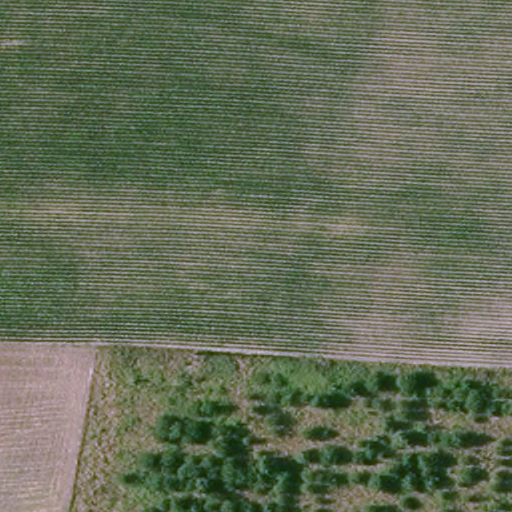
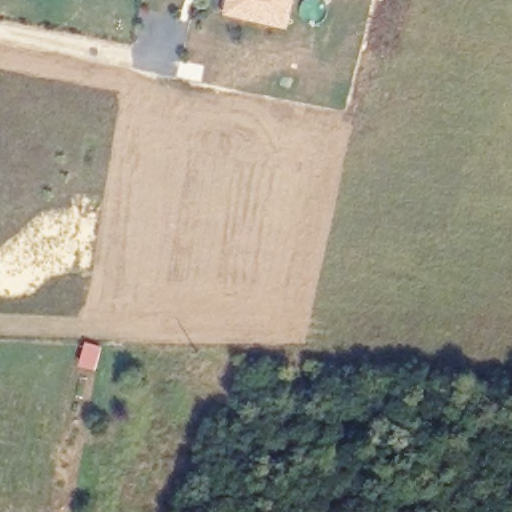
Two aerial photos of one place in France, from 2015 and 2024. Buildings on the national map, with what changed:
new [(225,14),(227,0),(294,0),(288,29),(225,14)]

